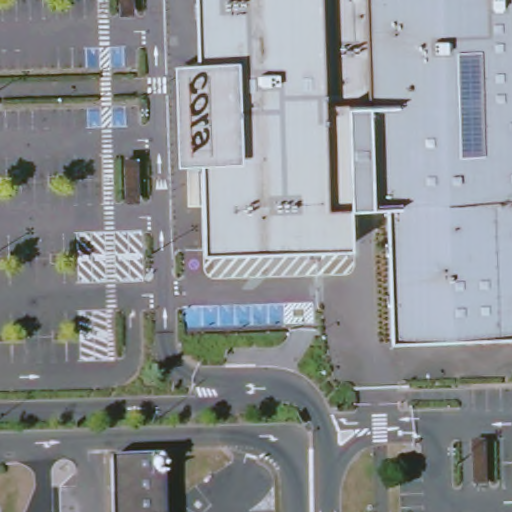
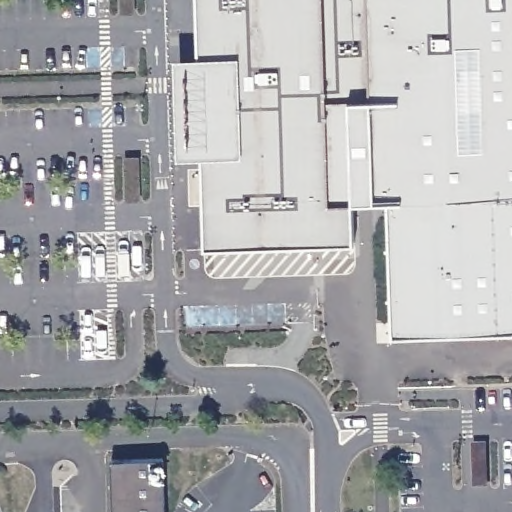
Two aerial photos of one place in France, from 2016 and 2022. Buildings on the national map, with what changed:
unchanged [(136,12),(121,13),(120,0),(136,0),(136,12)]
unchanged [(350,97),(315,98),(318,202),(352,201),(354,243),(206,247),(203,170),(214,169),(213,145),(189,146),(186,63),(210,61),(209,37),(206,37),(204,0),(347,0),(350,97)]
unchanged [(387,200),(352,201),(318,202),(315,98),(350,97),(347,0),(512,0),(512,331),(392,335),(387,200)]
unchanged [(126,201),(125,155),(141,155),(142,201),(126,201)]
unchanged [(489,440),(491,485),(475,486),(474,440),(489,440)]
unchanged [(165,458),(166,512),(114,512),(113,459),(165,458)]
unchanged [(50,483),(51,512),(17,512),(16,483),(50,483)]

